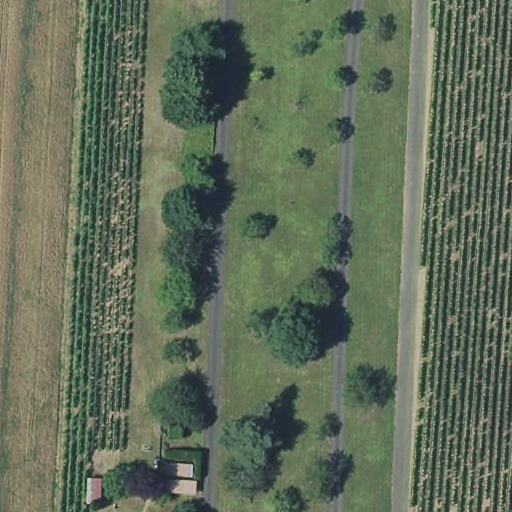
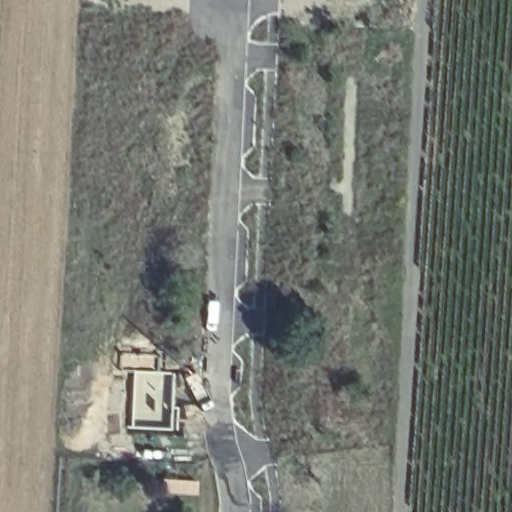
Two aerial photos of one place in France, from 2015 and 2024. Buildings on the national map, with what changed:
new [(176,373),(174,432),(130,430),(132,370),(176,373)]
new [(161,477),(198,480),(197,495),(160,493),(161,477)]

